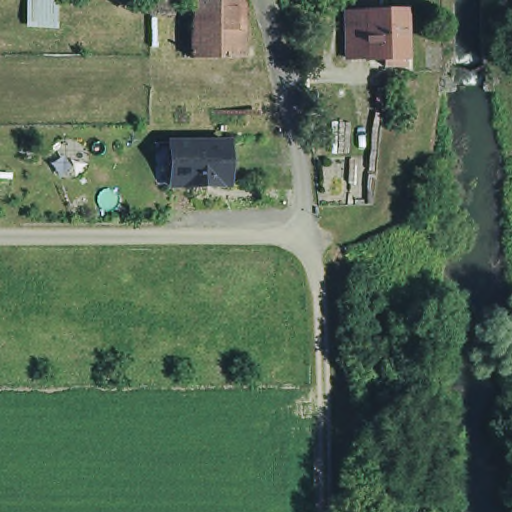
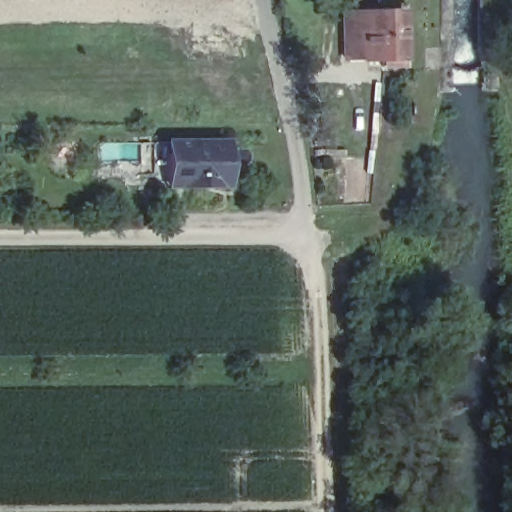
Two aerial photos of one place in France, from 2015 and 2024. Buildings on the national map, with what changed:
demolished [(197,55),(197,0),(249,0),(249,55),(197,55)]
unchanged [(391,55),(391,50),(371,50),(371,49),(352,49),(351,4),(370,4),(410,3),(411,49),(400,49),(400,55),(391,55)]
unchanged [(175,140),(232,140),(232,175),(232,182),(175,182),(160,182),(160,175),(160,140),(175,140)]

